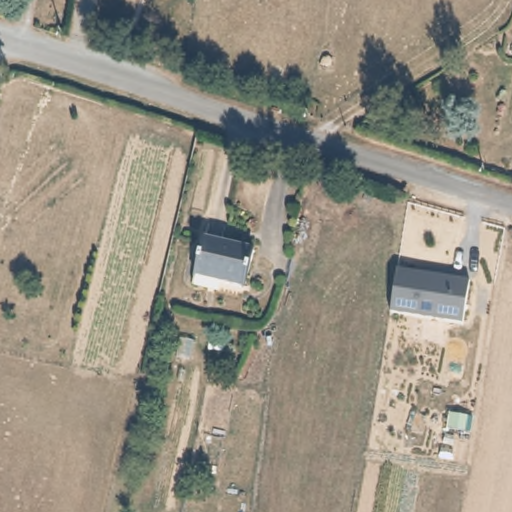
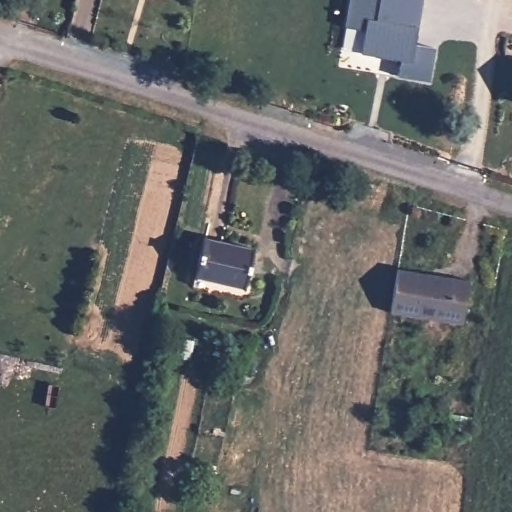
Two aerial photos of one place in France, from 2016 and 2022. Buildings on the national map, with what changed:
new [(414,45),(435,48),(428,82),(398,76),(401,60),(361,52),(365,30),(345,26),(350,0),(421,0),(414,45)]
unchanged [(195,277),(204,239),(254,251),(245,290),(195,277)]
unchanged [(397,268),(470,278),(464,323),(390,310),(397,268)]

